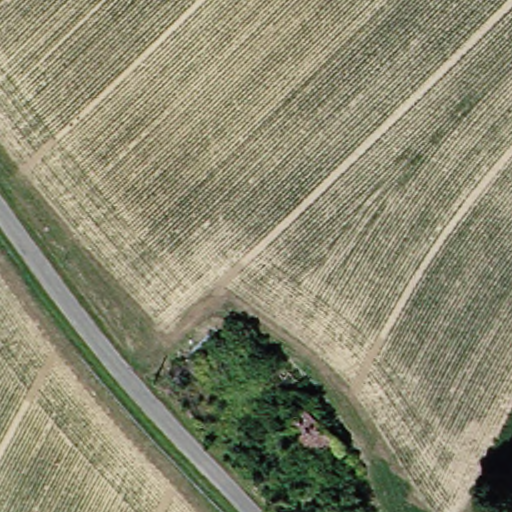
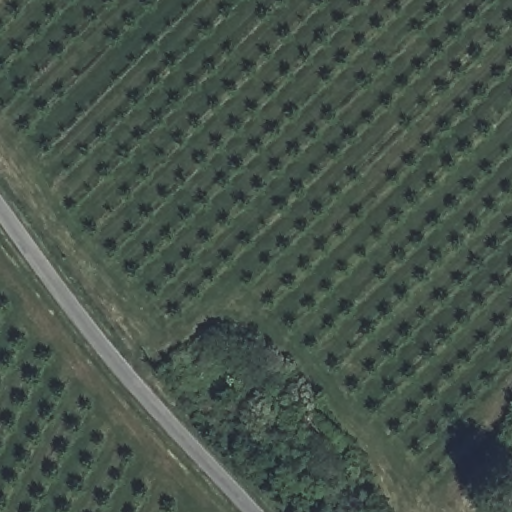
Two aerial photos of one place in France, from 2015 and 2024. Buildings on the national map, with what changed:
unchanged [(328,459),(333,467),(315,486),(293,463),(307,445),(276,412),(294,395),(345,440),(328,459)]

